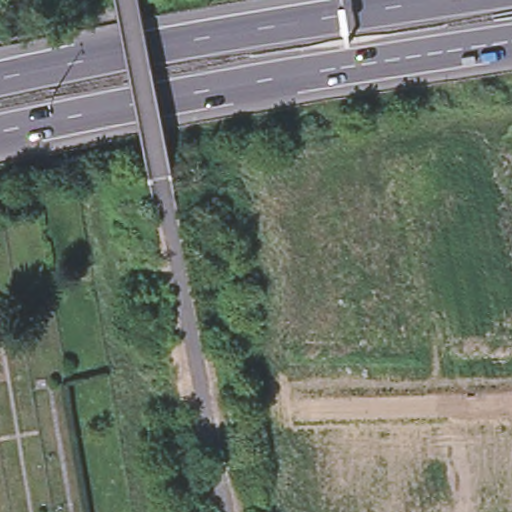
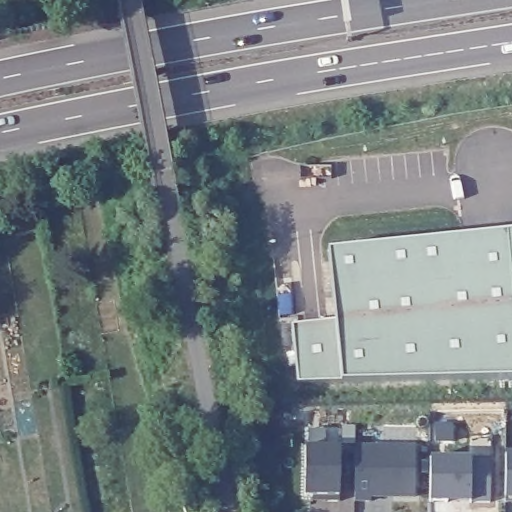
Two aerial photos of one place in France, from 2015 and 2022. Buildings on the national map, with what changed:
new [(291,325),(334,320),(326,250),(512,233),(512,378),(341,382),(297,381),(291,325)]
new [(512,496),(507,495),(507,448),(512,448),(512,496)]
new [(305,499),(306,450),(340,451),(339,505),(324,504),(313,504),(313,499),(305,499)]
new [(356,451),(416,451),(415,500),(371,500),(371,505),(355,504),(356,451)]
new [(430,506),(431,462),(472,462),(471,506),(470,506),(448,506),(430,506)]

